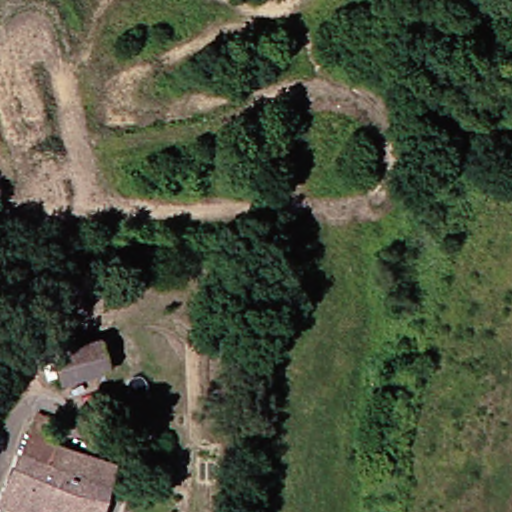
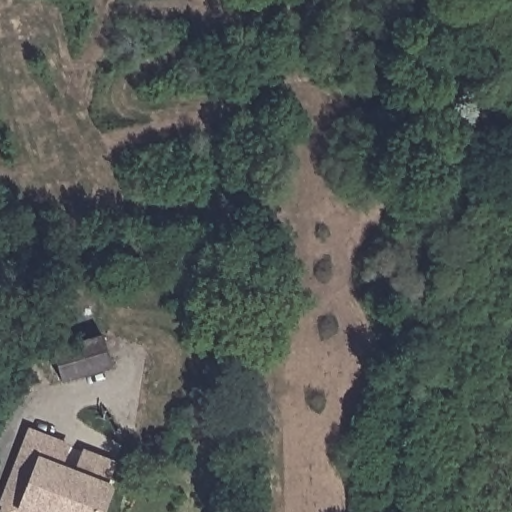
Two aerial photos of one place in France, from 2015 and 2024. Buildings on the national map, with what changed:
unchanged [(96,333),(105,363),(56,379),(47,346),(96,333)]
unchanged [(53,432),(119,462),(100,512),(6,512),(0,508),(37,416),(57,423),(53,432)]

